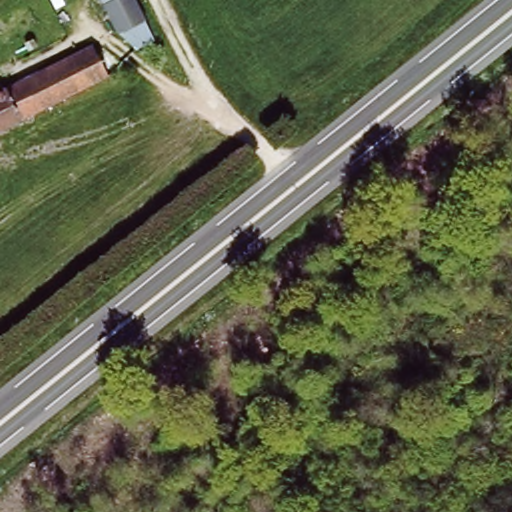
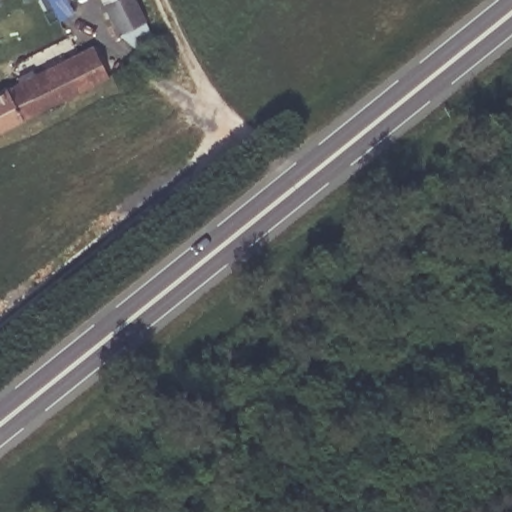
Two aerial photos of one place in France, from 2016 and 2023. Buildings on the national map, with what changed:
unchanged [(107,9),(103,0),(134,0),(155,45),(138,53),(122,40),(107,9)]
unchanged [(107,75),(0,133),(0,97),(92,48),(107,75)]

